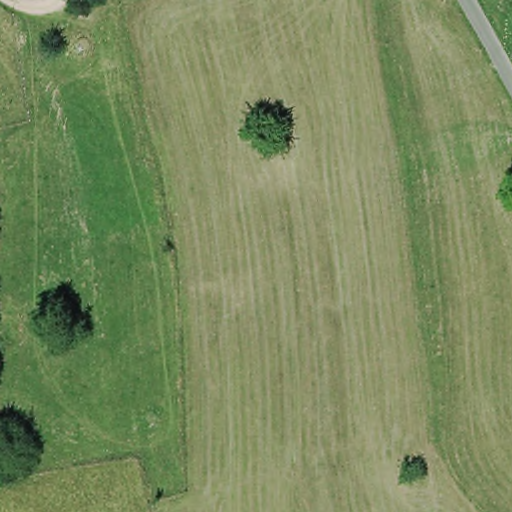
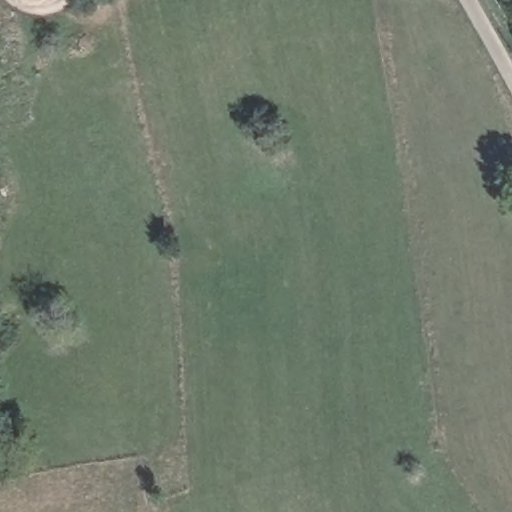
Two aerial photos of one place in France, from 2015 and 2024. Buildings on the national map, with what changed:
[]

